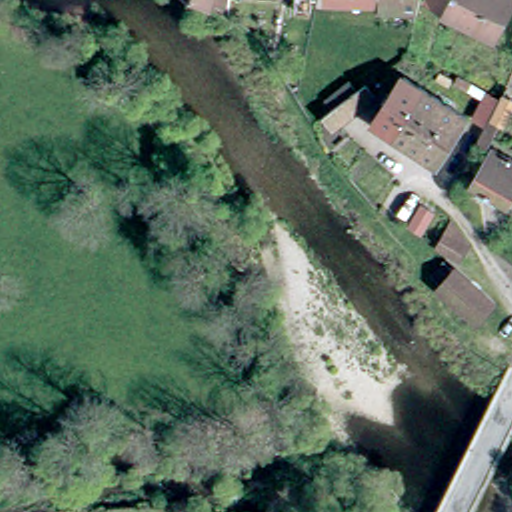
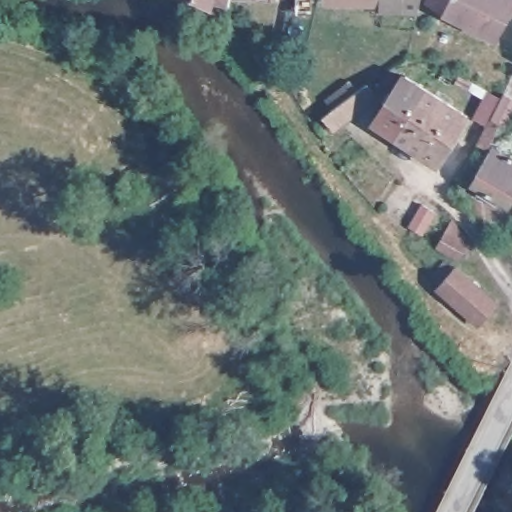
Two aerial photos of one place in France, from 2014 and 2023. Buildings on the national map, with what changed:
unchanged [(230,8),(216,2),(213,5),(205,0),(231,0),(230,8)]
unchanged [(329,0),(384,0),(384,1),(381,0),(329,0)]
unchanged [(421,10),(384,8),(384,1),(384,0),(423,0),(421,10)]
unchanged [(431,0),(512,0),(512,14),(499,40),(429,4),(431,0)]
unchanged [(474,85),(461,79),(464,73),(478,79),(474,85)]
unchanged [(408,78),(469,119),(438,167),(376,125),(408,78)]
unchanged [(382,94),(346,122),(340,126),(331,113),(339,107),(333,98),(356,80),(363,89),(373,81),(382,94)]
unchanged [(490,92),(493,94),(502,98),(491,120),(485,131),(474,123),(490,92)]
unchanged [(507,96),(512,98),(512,116),(508,125),(495,118),(507,96)]
unchanged [(489,149),(481,144),(493,122),(500,126),(489,149)]
unchanged [(481,188),(475,185),(494,151),(512,161),(512,201),(509,206),(501,201),(497,210),(476,196),(481,188)]
unchanged [(429,203),(443,211),(430,231),(417,223),(429,203)]
unchanged [(471,253),(464,263),(462,267),(438,253),(454,228),(471,253)]
unchanged [(479,329),(441,296),(459,276),(498,308),(482,328),(479,329)]

